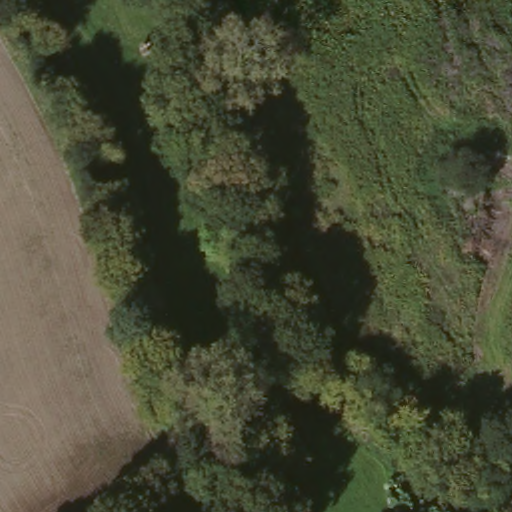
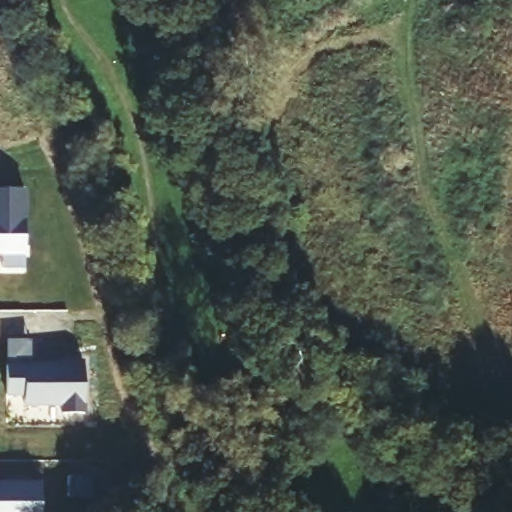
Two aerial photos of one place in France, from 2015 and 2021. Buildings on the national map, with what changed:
new [(26,187),(26,267),(4,267),(4,252),(0,252),(0,187),(26,187)]
new [(9,364),(28,365),(28,369),(39,368),(39,364),(66,364),(66,362),(86,361),(86,412),(64,412),(64,403),(26,404),(26,394),(9,394),(9,364)]
new [(69,483),(69,476),(94,476),(94,497),(69,497),(69,483)]
new [(42,484),(42,512),(0,512),(0,484),(42,484)]

